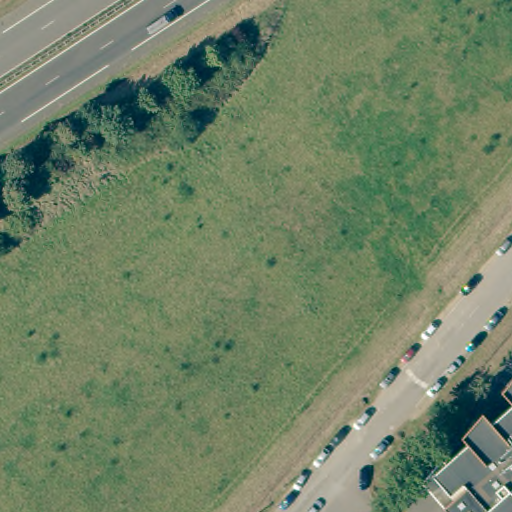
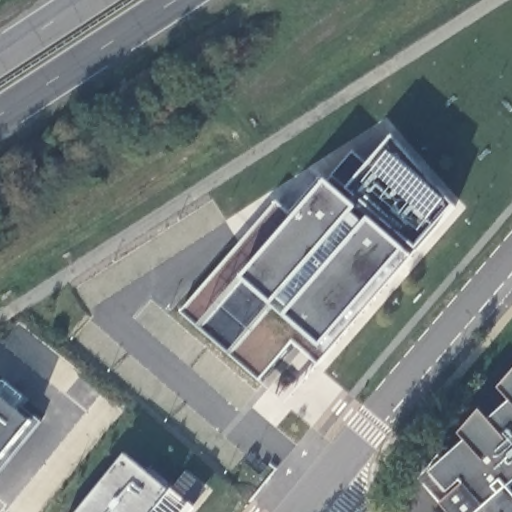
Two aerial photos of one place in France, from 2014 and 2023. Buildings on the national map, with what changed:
new [(279,202),(296,217),(329,183),(355,153),(368,165),(391,137),(453,206),(318,366),(293,342),(260,380),(182,312),(279,202)]
unchanged [(442,461),(512,400),(512,484),(507,487),(512,493),(512,512),(447,512),(440,505),(420,481),(442,461)]
new [(124,453),(169,490),(188,471),(209,489),(190,512),(78,512),(124,453)]

